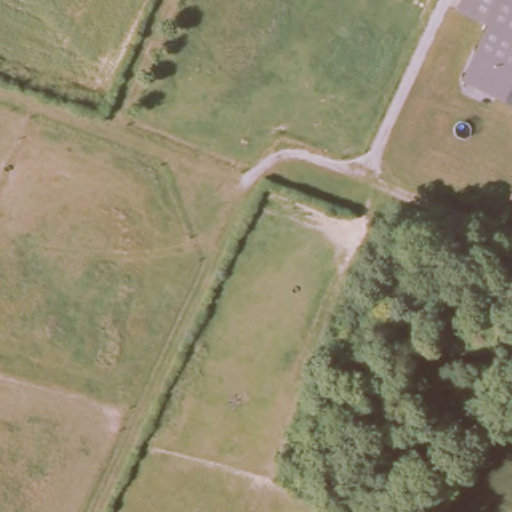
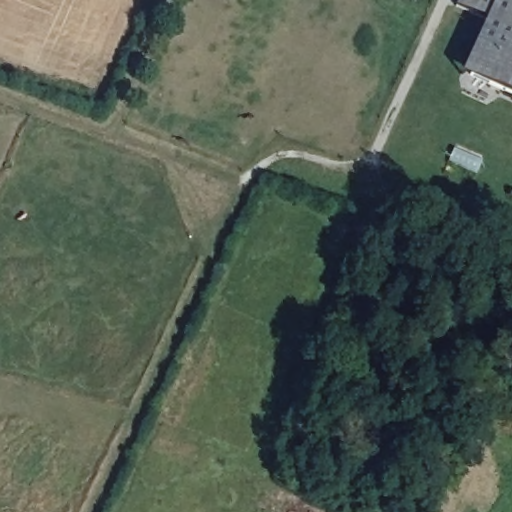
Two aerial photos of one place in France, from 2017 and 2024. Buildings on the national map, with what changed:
unchanged [(461,73),(490,19),(457,5),(460,0),(512,0),(512,94),(461,73)]

